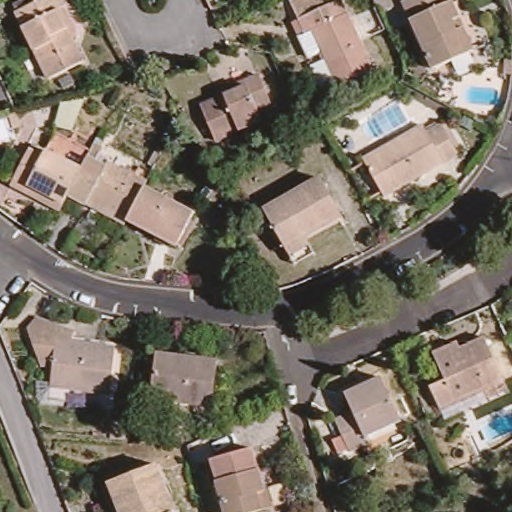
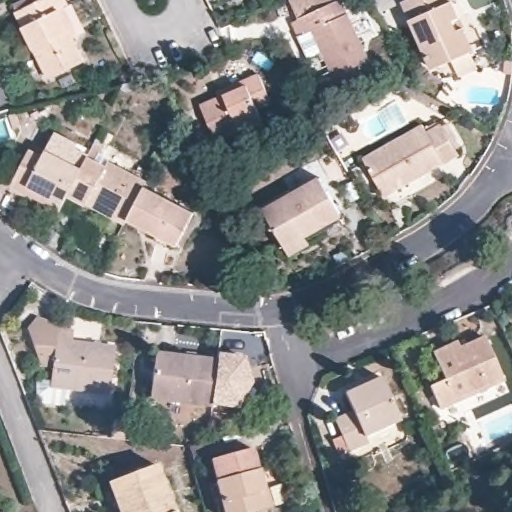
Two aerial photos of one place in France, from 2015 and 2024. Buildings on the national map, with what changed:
unchanged [(20,13),(44,0),(67,0),(70,7),(68,9),(81,37),(75,41),(85,63),(52,80),(20,13)]
unchanged [(343,86),(316,31),(309,34),(294,0),(343,0),(377,70),(343,86)]
unchanged [(427,64),(398,0),(448,0),(454,14),(469,46),(461,49),(427,64)]
unchanged [(249,91),(248,86),(261,80),(274,108),(260,114),(264,125),(219,145),(204,111),(249,91)]
unchanged [(427,125),(431,131),(445,124),(463,154),(390,195),(368,159),(427,125)]
unchanged [(59,210),(39,200),(43,195),(26,186),(13,179),(28,150),(41,157),(54,132),(90,149),(86,156),(67,195),(59,210)]
unchanged [(145,187),(138,200),(128,219),(125,224),(67,195),(86,156),(106,166),(108,161),(148,182),(145,187)]
unchanged [(294,255),(289,247),(268,209),(324,178),(345,214),(309,235),(313,244),(294,255)]
unchanged [(194,211),(177,244),(128,219),(138,200),(145,187),(194,211)]
unchanged [(73,335),(71,343),(115,349),(109,393),(49,387),(53,363),(39,362),(28,330),(73,335)]
unchanged [(457,342),(460,349),(484,338),(504,381),(441,409),(430,387),(445,380),(433,354),(457,342)]
new [(246,356),(253,381),(239,408),(211,405),(216,362),(218,353),(246,356)]
unchanged [(216,362),(211,405),(151,398),(156,355),(216,362)]
unchanged [(381,378),(401,420),(364,436),(368,442),(349,451),(334,420),(353,411),(344,394),(381,378)]
unchanged [(108,467),(118,464),(157,449),(181,512),(126,512),(108,467)]
unchanged [(255,451),(261,472),(274,469),(283,505),(254,512),(226,512),(213,463),(255,451)]

